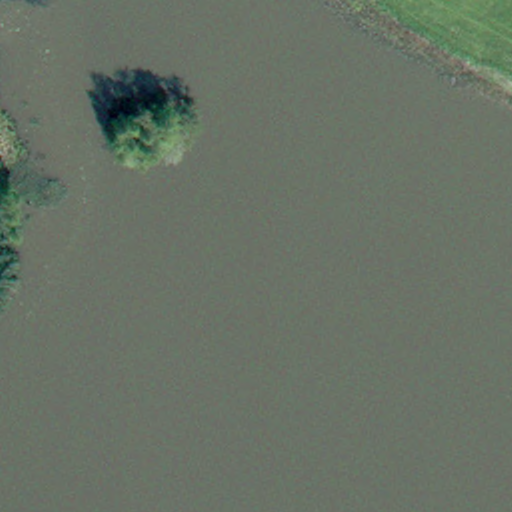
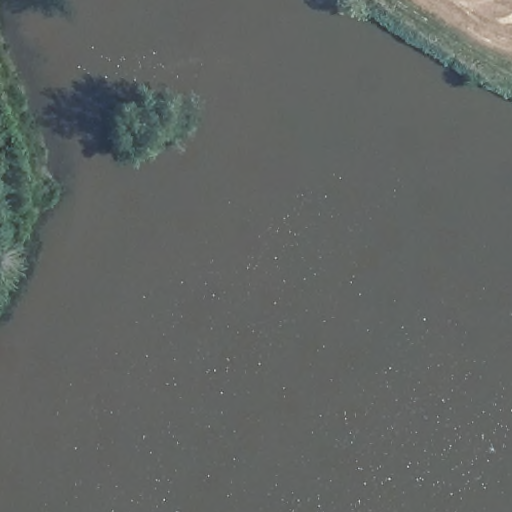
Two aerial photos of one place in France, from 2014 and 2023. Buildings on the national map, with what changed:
[]

